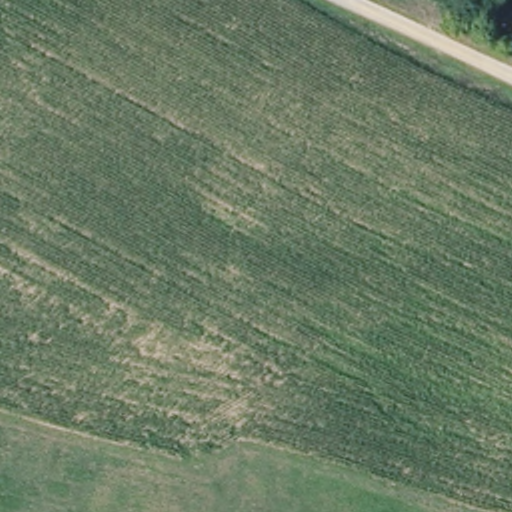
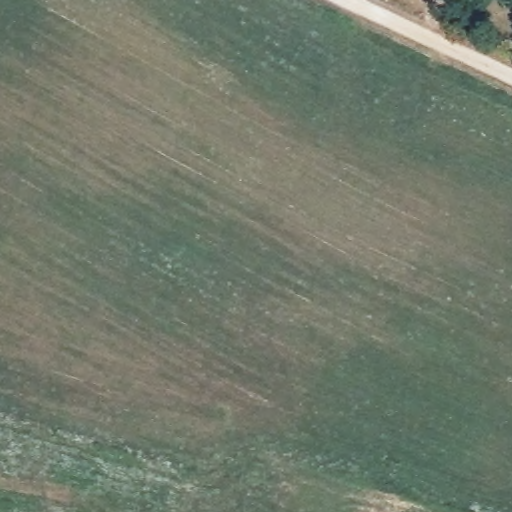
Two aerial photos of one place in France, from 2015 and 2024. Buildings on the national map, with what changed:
[]

